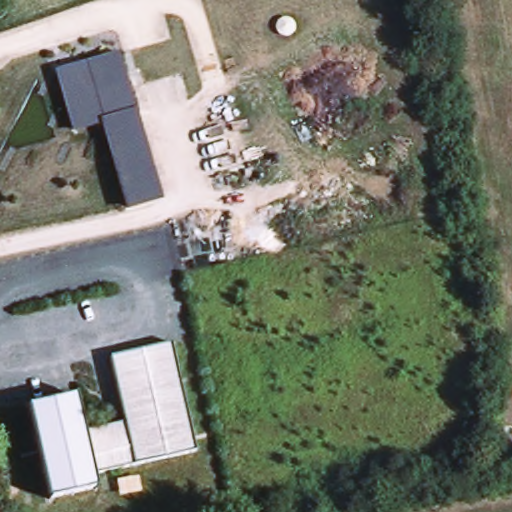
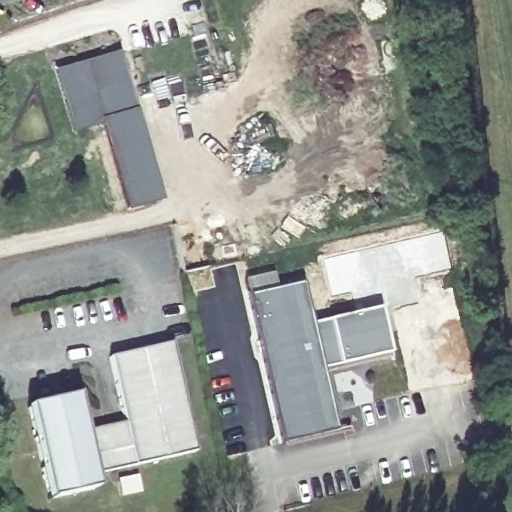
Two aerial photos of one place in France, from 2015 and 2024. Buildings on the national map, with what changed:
unchanged [(160,196),(131,206),(102,121),(74,130),(64,101),(61,95),(54,72),(112,53),(121,81),(160,196)]
new [(306,283),(315,325),(383,310),(392,356),(325,370),(338,432),(283,444),(251,295),(306,283)]
unchanged [(199,459),(95,481),(97,495),(53,504),(33,411),(77,402),(87,446),(130,437),(115,363),(176,350),(199,459)]
unchanged [(38,396),(2,405),(0,398),(0,376),(30,368),(38,396)]

